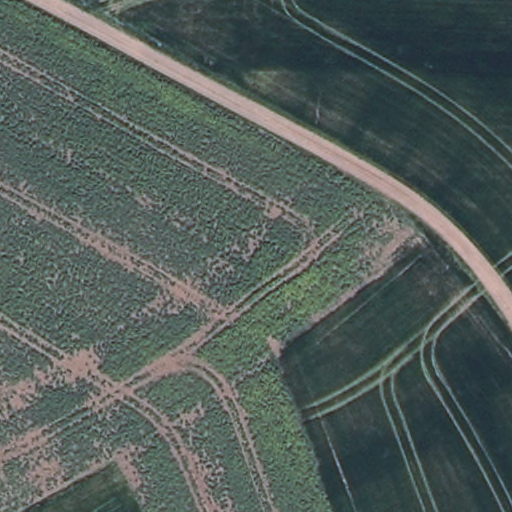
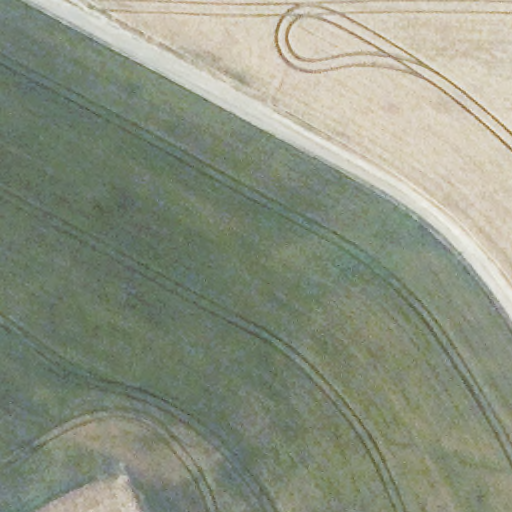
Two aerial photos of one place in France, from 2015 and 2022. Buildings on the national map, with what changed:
[]

